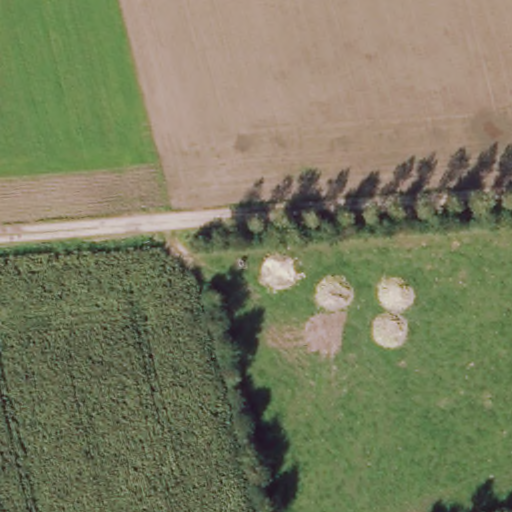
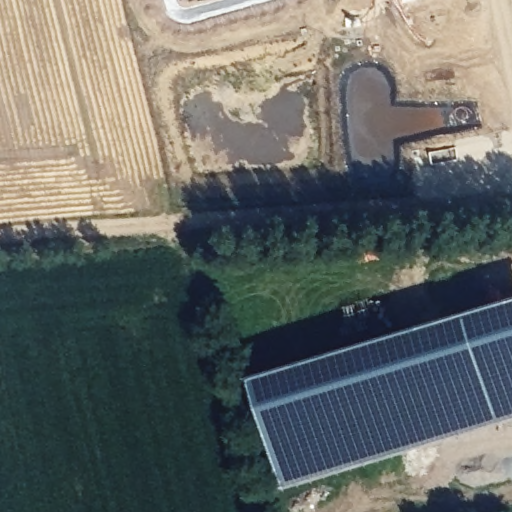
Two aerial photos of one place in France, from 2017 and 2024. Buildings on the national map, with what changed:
new [(251,370),(512,292),(512,414),(286,483),(251,370)]

